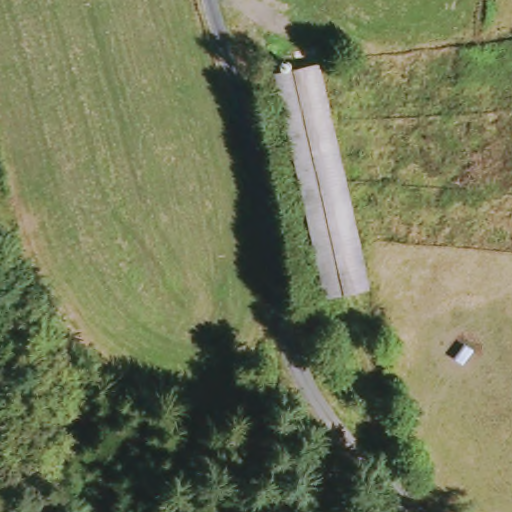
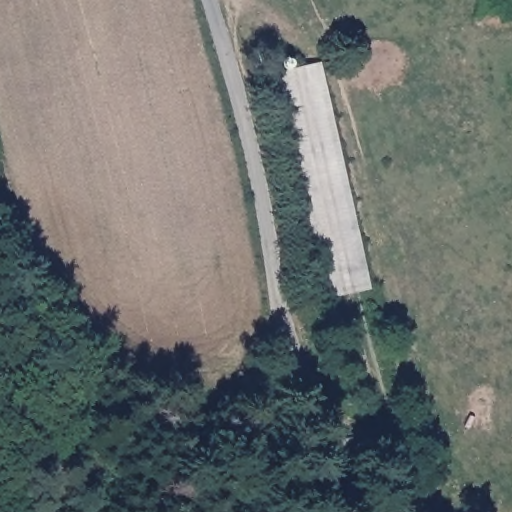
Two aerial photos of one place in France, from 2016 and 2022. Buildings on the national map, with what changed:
unchanged [(279,72),(320,61),(379,288),(335,298),(279,72)]

